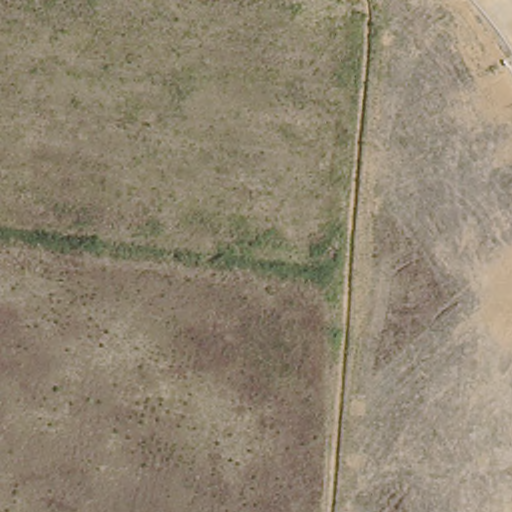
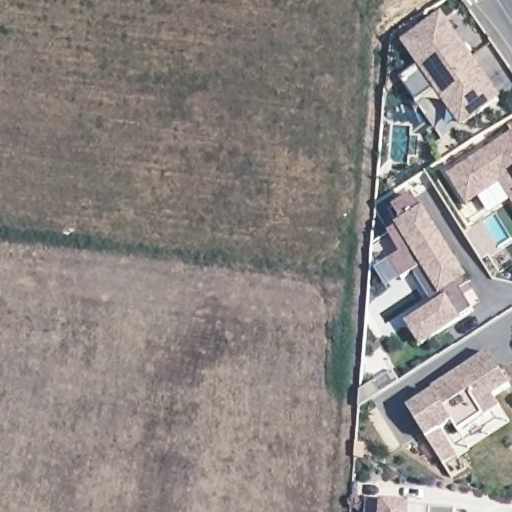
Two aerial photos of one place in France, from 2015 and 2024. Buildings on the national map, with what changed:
new [(444,21),(498,97),(461,123),(407,47),(444,21)]
new [(512,136),(512,200),(502,184),(467,206),(448,175),(512,136)]
new [(471,310),(420,342),(408,323),(446,299),(424,265),(401,279),(389,260),(399,253),(388,235),(402,226),(391,210),(413,196),(469,284),(459,290),(464,298),(471,310)]
new [(437,395),(433,390),(491,355),(512,388),(494,398),(499,408),(461,432),(456,423),(444,431),(459,457),(444,466),(411,410),(437,395)]
new [(359,407),(361,392),(375,382),(381,393),(359,407)]
new [(369,504),(458,511),(457,512),(369,512),(369,504)]

